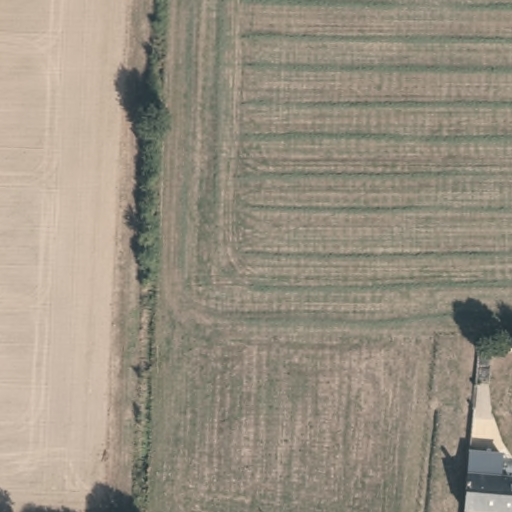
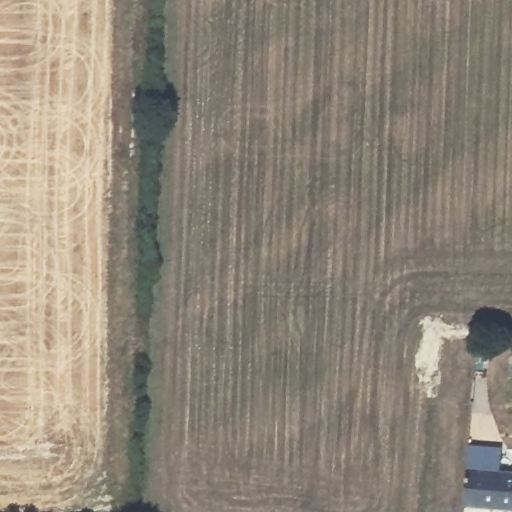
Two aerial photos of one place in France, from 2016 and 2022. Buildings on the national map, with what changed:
unchanged [(461,504),(463,467),(465,442),(488,444),(486,469),(512,471),(512,509),(461,504)]

